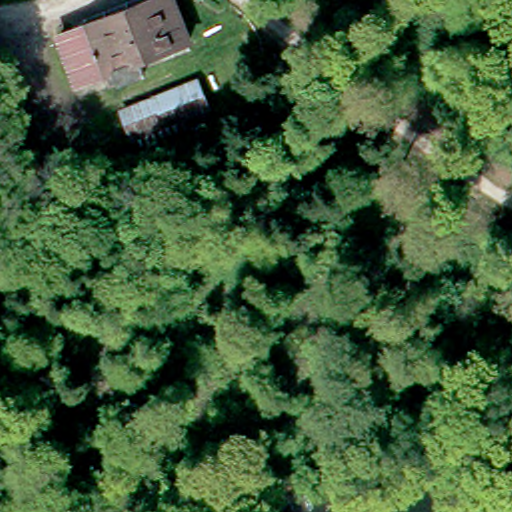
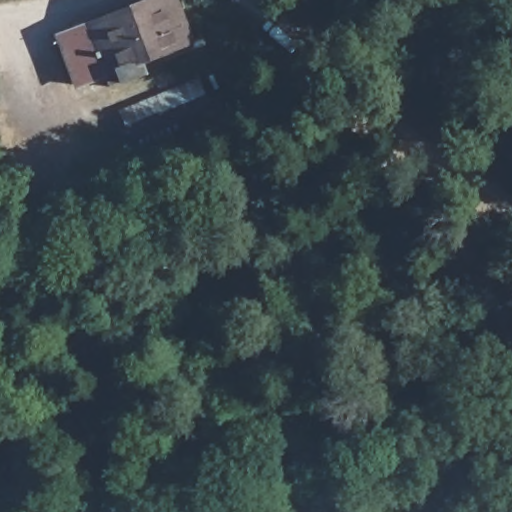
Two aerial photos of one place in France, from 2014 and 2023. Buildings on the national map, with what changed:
unchanged [(193,34),(141,58),(146,69),(114,84),(108,71),(79,83),(60,40),(87,28),(152,0),(178,0),(193,34)]
unchanged [(87,28),(82,17),(124,0),(152,0),(87,28)]
unchanged [(143,148),(138,137),(126,110),(198,76),(210,101),(177,118),(183,129),(143,148)]

